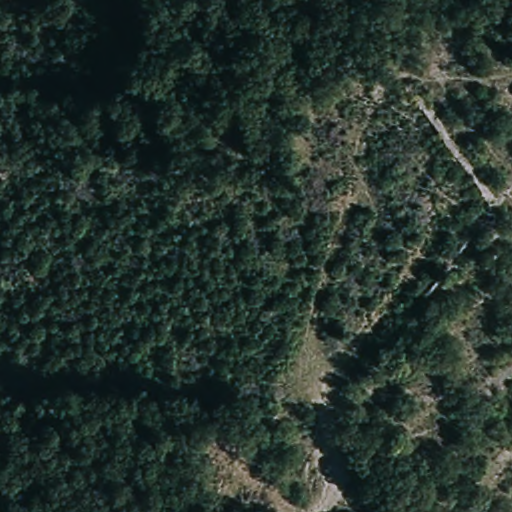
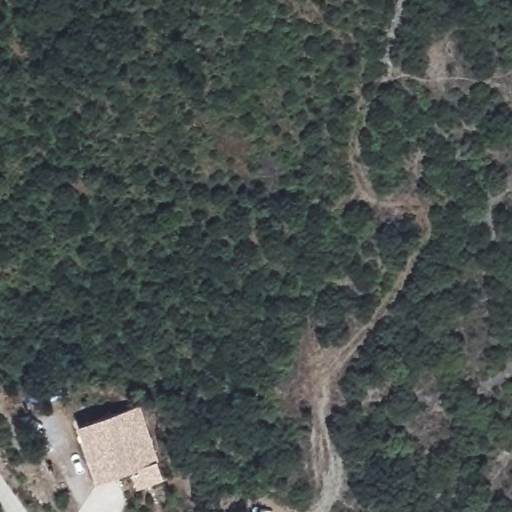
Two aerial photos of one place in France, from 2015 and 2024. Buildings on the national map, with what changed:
new [(140,405),(164,480),(136,489),(130,473),(97,484),(77,425),(140,405)]

